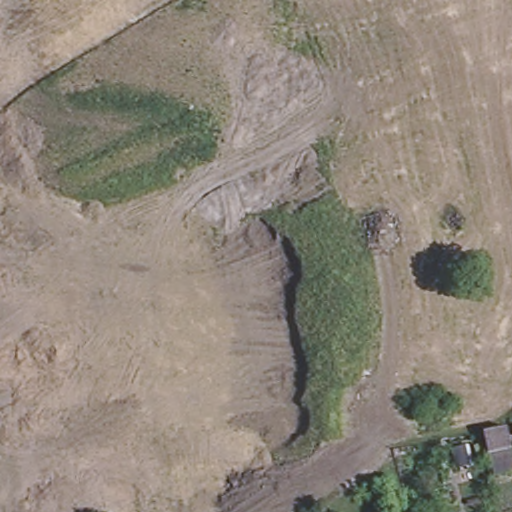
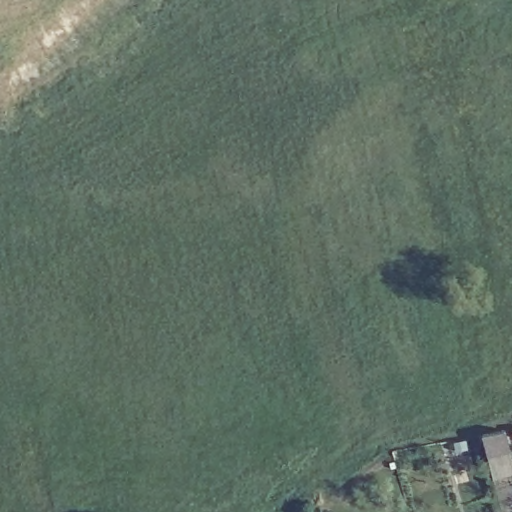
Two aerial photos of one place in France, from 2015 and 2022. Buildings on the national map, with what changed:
unchanged [(510,450),(488,456),(483,435),(505,431),(510,450)]

